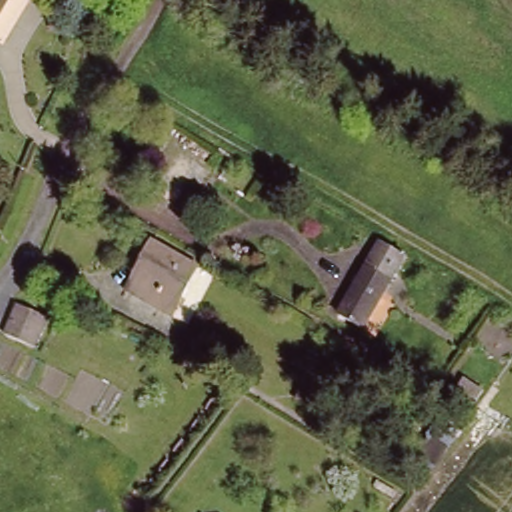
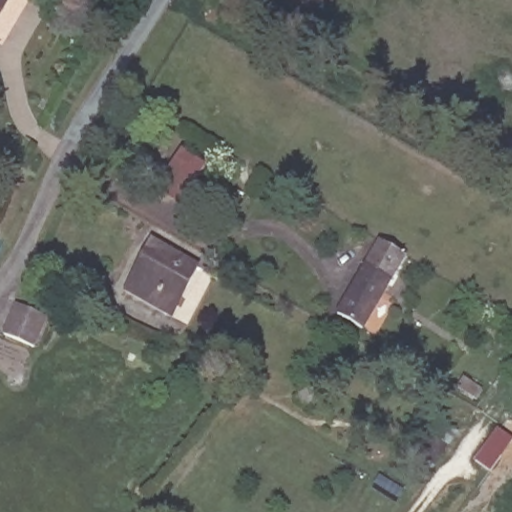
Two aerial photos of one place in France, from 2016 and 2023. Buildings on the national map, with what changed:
unchanged [(0,13),(0,0),(7,0),(0,13)]
unchanged [(168,170),(183,178),(170,199),(156,191),(168,170)]
unchanged [(155,242),(198,265),(171,315),(128,292),(155,242)]
unchanged [(398,266),(371,314),(344,299),(372,251),(398,266)]
unchanged [(18,311),(45,324),(32,352),(4,339),(18,311)]
unchanged [(302,385),(318,395),(309,409),(293,400),(302,385)]
new [(512,442),(512,444),(490,474),(474,463),(497,431),(512,442)]

